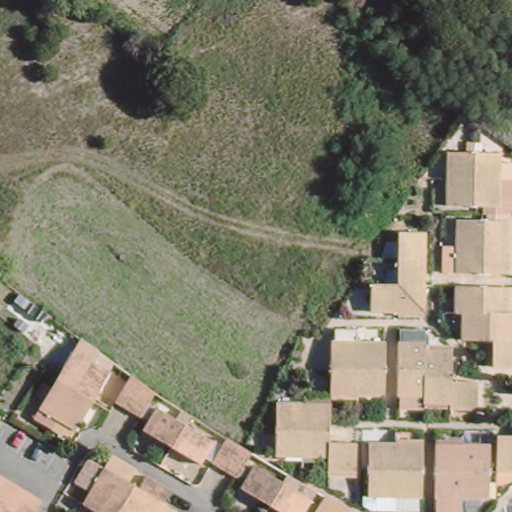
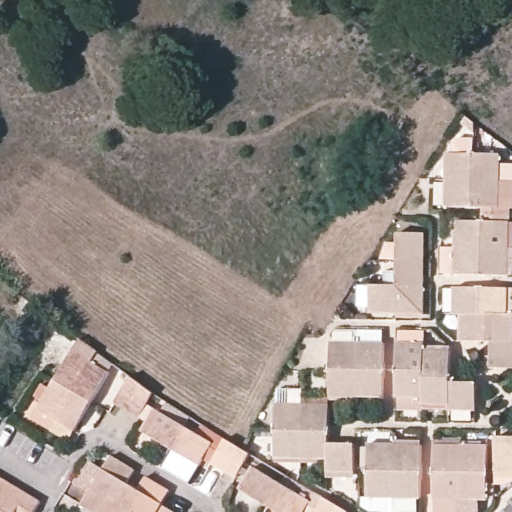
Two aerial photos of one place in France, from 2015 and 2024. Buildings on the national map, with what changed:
unchanged [(494,207),(469,207),(442,206),(442,179),(443,152),(469,153),(495,154),(495,180),(494,207)]
unchanged [(507,273),(453,272),(454,246),(455,219),(480,219),(507,220),(507,273)]
unchanged [(422,315),(394,314),(369,314),(369,286),(395,286),(395,259),(396,232),(423,234),(423,260),(422,287),(422,315)]
unchanged [(512,339),(512,367),(491,366),(491,340),(459,338),(460,312),(451,312),(452,286),(508,287),(507,313),(512,313),(512,326),(512,339)]
unchanged [(31,423),(36,415),(40,406),(32,402),(39,391),(47,395),(53,385),(70,356),(78,342),(94,355),(87,365),(106,376),(89,405),(71,436),(52,425),(48,432),(47,432),(31,423)]
unchanged [(381,398),(354,398),(327,397),(327,374),(328,343),(355,343),(382,343),(381,398)]
unchanged [(452,382),(479,382),(478,412),(451,411),(451,406),(425,405),(425,400),(399,398),(400,344),(426,345),(426,352),(452,352),(452,382)]
unchanged [(113,402),(130,372),(141,381),(151,388),(135,415),(124,408),(113,402)]
unchanged [(327,443),(354,445),(354,475),(326,473),(326,461),(300,460),(274,458),(274,432),(275,405),(301,406),(327,406),(327,425),(327,443)]
unchanged [(172,443),(145,427),(158,407),(184,423),(214,441),(202,461),(172,443)]
unchanged [(494,441),(494,433),(512,434),(512,469),(493,469),(494,441)]
unchanged [(391,503),(389,503),(374,502),(373,502),(373,493),(365,492),(367,440),(393,441),(419,442),(417,495),(415,495),(414,508),(391,507),(391,503)]
unchanged [(222,470),(211,463),(224,441),(235,447),(237,448),(246,453),(233,477),(222,470)]
unchanged [(431,496),(433,441),(460,442),(487,442),(486,473),(485,498),(458,497),(457,512),(430,512),(431,496)]
unchanged [(77,508),(89,488),(105,460),(127,473),(121,486),(125,489),(131,492),(139,480),(163,493),(155,507),(164,512),(83,512),(77,508)]
unchanged [(269,507),(242,491),(254,469),(281,485),(311,502),(305,512),(278,512),(269,507)]
unchanged [(43,501),(36,512),(0,512),(0,476),(43,501)]
unchanged [(321,497),(333,505),(344,512),(312,512),(321,497)]

